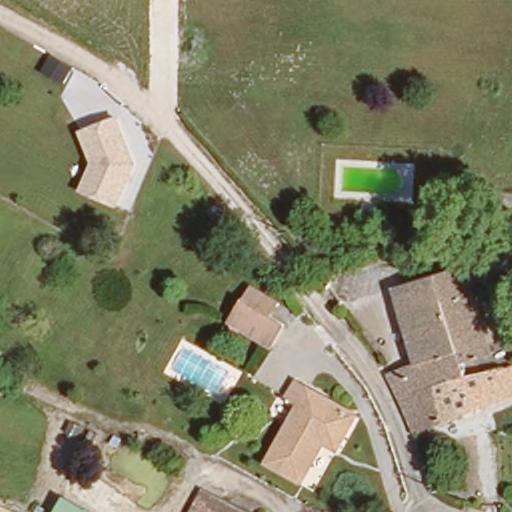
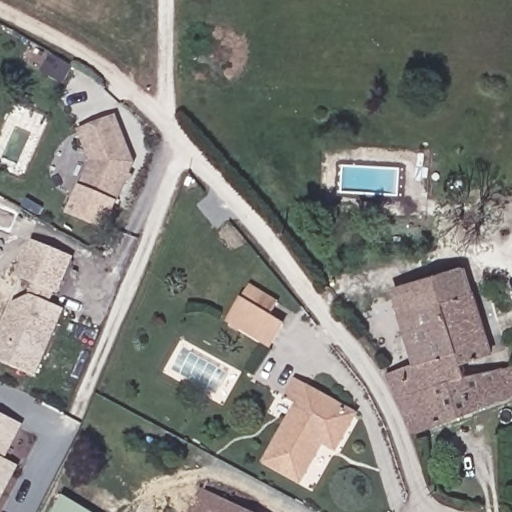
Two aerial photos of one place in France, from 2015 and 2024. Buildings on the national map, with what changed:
unchanged [(137,163),(117,207),(79,190),(90,162),(80,130),(117,115),(137,163)]
new [(117,207),(107,230),(69,216),(79,190),(117,207)]
new [(52,306),(64,311),(36,378),(0,363),(0,334),(17,291),(33,298),(37,287),(16,275),(31,241),(9,233),(17,214),(38,222),(31,240),(73,257),(52,306)]
unchanged [(385,371),(415,361),(396,285),(469,267),(492,354),(462,362),(467,380),(436,390),(445,417),(425,423),(412,428),(407,417),(385,371)]
unchanged [(272,345),(231,324),(242,303),(250,285),(263,293),(255,309),(282,323),(272,345)]
unchanged [(445,417),(436,390),(467,380),(505,368),(512,381),(512,395),(445,417)]
unchanged [(332,451),(316,443),(297,481),(262,463),(289,407),(275,400),(282,383),(297,390),(350,415),(332,451)]
new [(0,506),(0,415),(23,427),(7,459),(20,466),(0,506)]
unchanged [(247,512),(182,512),(196,485),(247,512)]
unchanged [(54,512),(62,496),(89,512),(54,512)]

